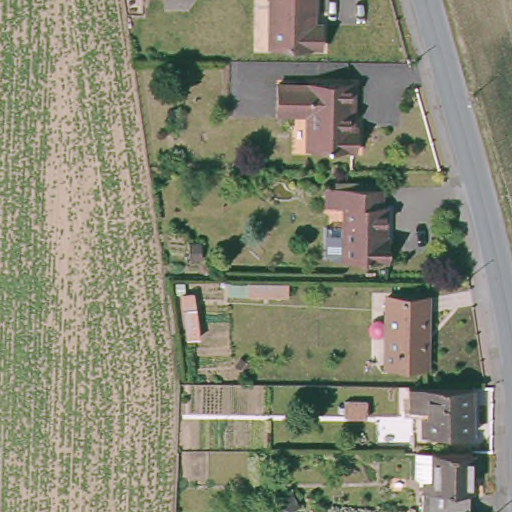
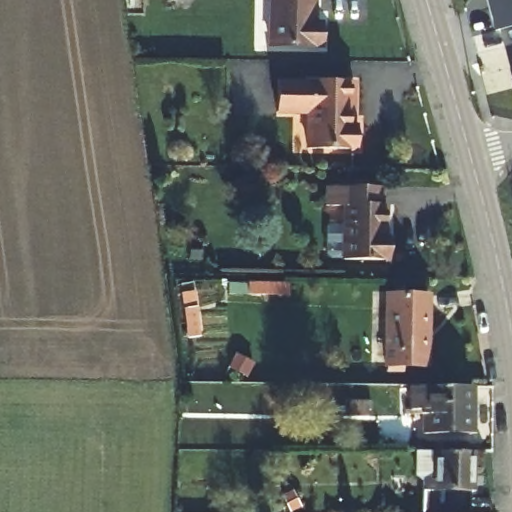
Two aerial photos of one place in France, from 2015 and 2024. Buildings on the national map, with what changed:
unchanged [(321,27),(321,52),(269,51),(269,0),(313,0),(313,27),(321,27)]
new [(487,0),(512,0),(512,28),(495,32),(487,0)]
new [(512,75),(505,47),(512,46),(512,75)]
unchanged [(350,90),(350,116),(346,117),(346,137),(355,137),(355,157),(303,159),(302,122),(270,122),(270,91),(350,90)]
unchanged [(325,188),(380,191),(378,206),(384,206),(382,239),(388,240),(386,263),(340,259),(342,209),(325,207),(325,188)]
unchanged [(240,292),(240,280),(281,281),(282,292),(240,292)]
unchanged [(383,292),(426,292),(426,366),(383,365),(383,292)]
unchanged [(468,391),(467,443),(417,443),(416,421),(402,421),(403,390),(457,391),(468,391)]
unchanged [(470,512),(420,512),(420,497),(415,497),(415,482),(408,482),(408,454),(469,454),(470,512)]

